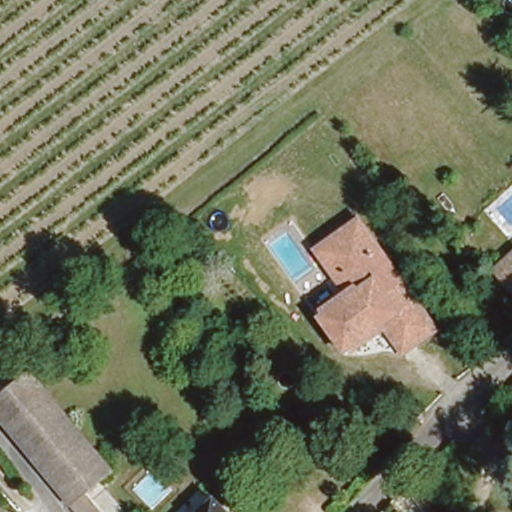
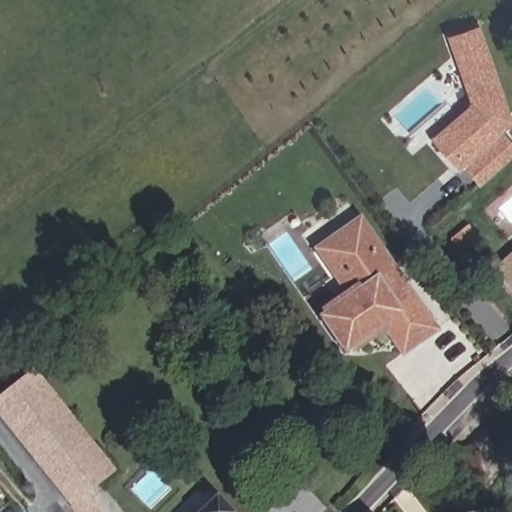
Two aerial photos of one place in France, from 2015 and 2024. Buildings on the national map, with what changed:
new [(461,122),(466,128),(481,116),(446,44),(471,31),(512,113),(512,126),(505,131),(512,138),(512,159),(481,185),(441,139),(461,122)]
unchanged [(409,291),(440,336),(416,352),(392,317),(382,323),(385,329),(354,350),(346,355),(342,350),(322,320),(363,293),(350,273),(344,276),(339,280),(336,275),(322,255),(364,226),(374,242),(396,275),(398,274),(409,291)]
unchanged [(491,271),(512,254),(512,295),(491,271)]
unchanged [(115,464),(105,472),(104,473),(91,485),(113,512),(87,512),(80,505),(47,465),(44,461),(0,406),(0,389),(32,362),(115,464)]
unchanged [(328,408),(311,425),(299,414),(294,409),(300,403),(304,407),(316,396),(328,408)]
unchanged [(235,512),(198,512),(217,493),(235,512)]

